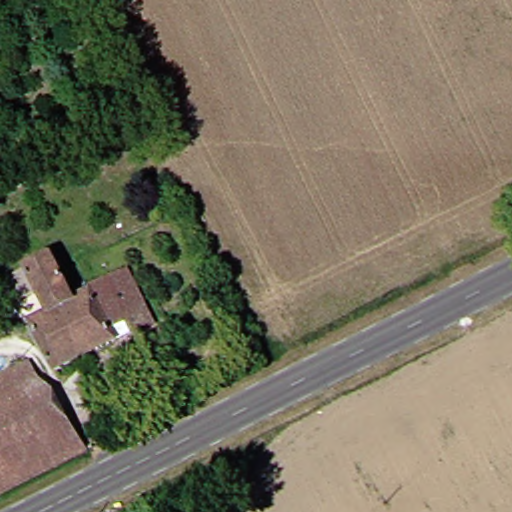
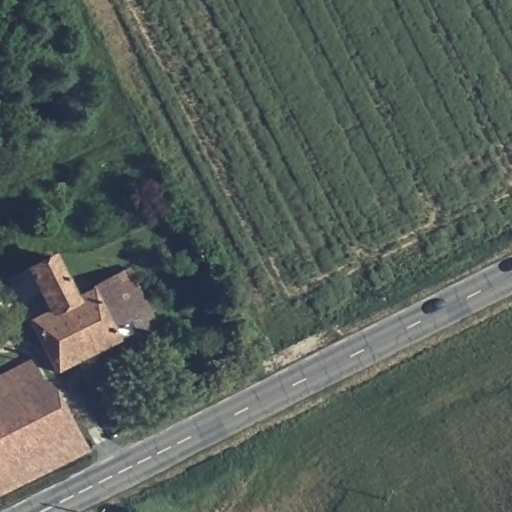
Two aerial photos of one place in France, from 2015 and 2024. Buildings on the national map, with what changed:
unchanged [(133,273),(164,330),(151,336),(136,342),(125,323),(117,326),(107,312),(99,317),(114,346),(54,376),(27,323),(49,314),(40,297),(25,304),(13,283),(27,273),(55,260),(77,300),(99,290),(122,278),(133,273)]
unchanged [(45,381),(26,391),(64,470),(0,502),(0,384),(37,365),(45,381)]
unchanged [(26,391),(45,381),(52,377),(91,455),(64,470),(26,391)]

